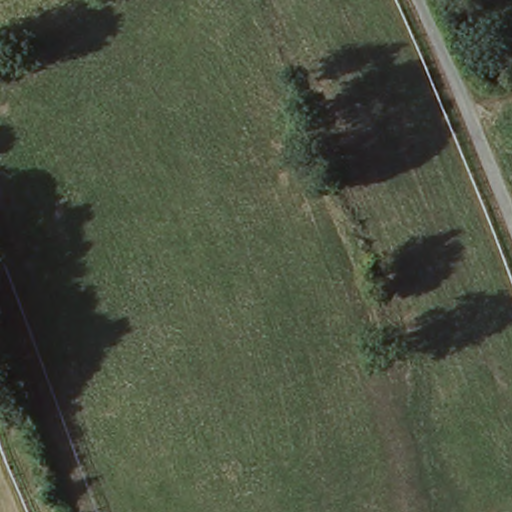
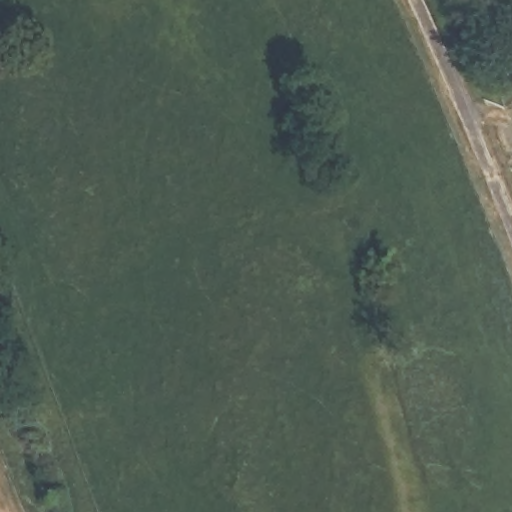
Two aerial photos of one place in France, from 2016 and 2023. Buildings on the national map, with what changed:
[]

